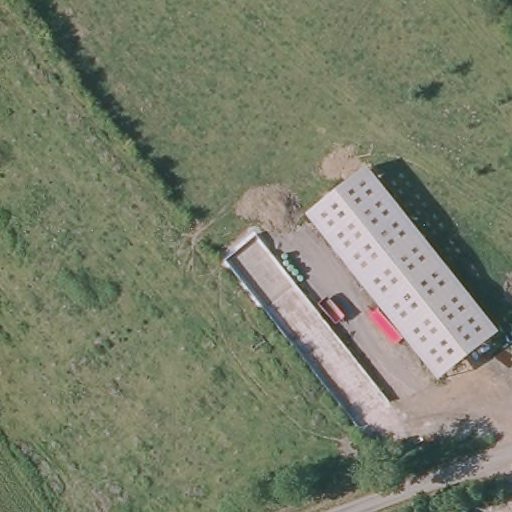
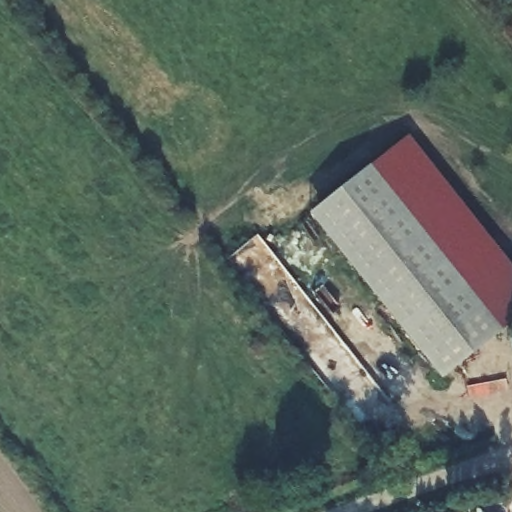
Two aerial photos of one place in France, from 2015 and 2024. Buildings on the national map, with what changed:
new [(408,135),(512,268),(512,323),(500,332),(368,167),(408,135)]
unchanged [(368,167),(500,332),(440,380),(308,214),(368,167)]

